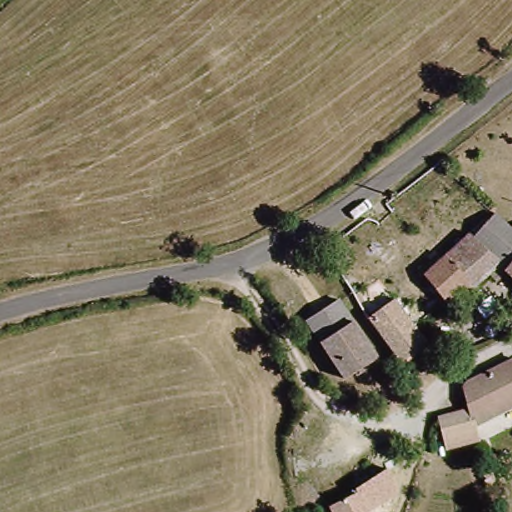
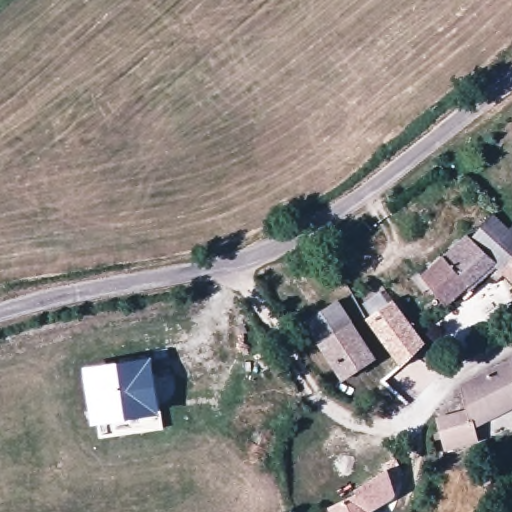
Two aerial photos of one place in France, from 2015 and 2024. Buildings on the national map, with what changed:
unchanged [(456,295),(447,305),(443,306),(417,280),(459,237),(464,241),(485,216),(502,231),(510,222),(512,223),(512,256),(498,272),(499,273),(490,282),(482,274),(465,291),(468,294),(461,300),(456,295)]
unchanged [(512,257),(512,285),(499,273),(512,257)]
unchanged [(400,362),(367,317),(394,296),(415,325),(428,342),(425,345),(400,362)]
unchanged [(343,382),(304,323),(336,302),(375,361),(343,382)]
unchanged [(468,405),(463,385),(465,382),(512,356),(512,403),(473,425),(470,410),(468,405)]
new [(148,363),(155,410),(98,417),(92,372),(148,363)]
unchanged [(446,450),(437,417),(470,410),(473,425),(477,443),(446,450)]
unchanged [(355,485),(382,461),(395,488),(369,512),(334,512),(330,503),(357,490),(355,485)]

